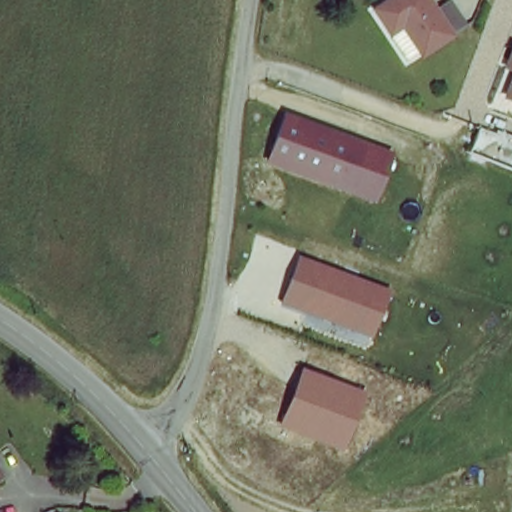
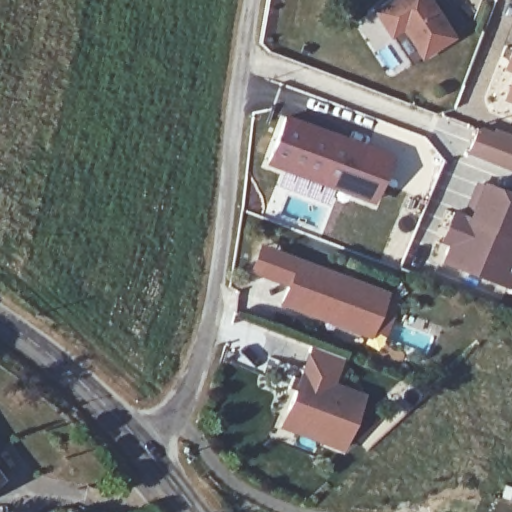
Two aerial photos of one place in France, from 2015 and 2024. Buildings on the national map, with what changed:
unchanged [(382,0),(431,0),(450,30),(413,54),(380,1),(382,0)]
unchanged [(512,82),(512,101),(506,98),(512,82)]
unchanged [(373,206),(263,163),(284,115),(392,153),(373,206)]
unchanged [(494,133),(496,131),(512,137),(512,168),(469,153),(476,127),(494,133)]
new [(489,279),(443,261),(461,216),(468,218),(482,184),(512,196),(512,271),(506,286),(489,279)]
unchanged [(390,291),(371,338),(280,303),(298,257),(390,291)]
unchanged [(366,393),(345,451),(280,428),(301,368),(366,393)]

